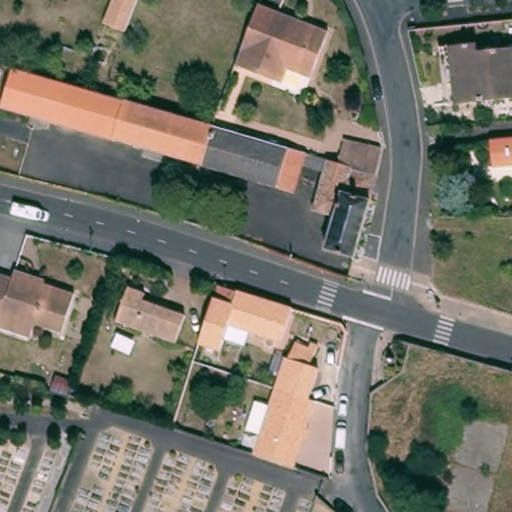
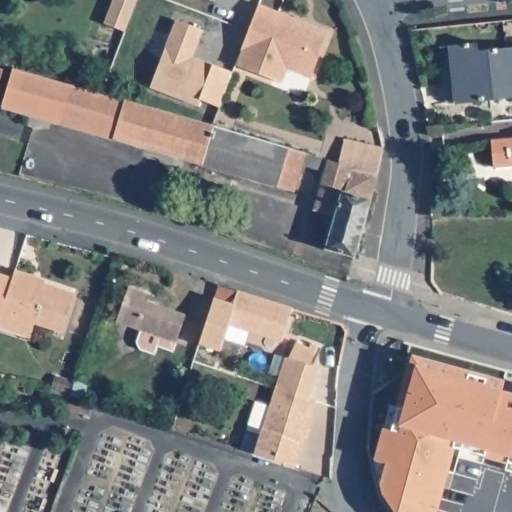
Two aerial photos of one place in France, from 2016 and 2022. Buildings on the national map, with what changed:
unchanged [(137,0),(126,30),(105,24),(113,0),(137,0)]
unchanged [(272,82),(234,67),(257,8),(326,36),(308,83),(285,72),(280,86),(272,82)]
new [(201,32),(191,58),(202,63),(231,74),(217,107),(198,101),(195,107),(148,88),(175,21),(201,32)]
unchanged [(483,43),(485,52),(512,50),(512,101),(460,105),(455,45),(483,43)]
unchanged [(7,109),(18,69),(76,86),(75,92),(65,125),(7,109)]
unchanged [(0,101),(0,70),(8,72),(0,101)]
unchanged [(280,189),(65,125),(75,92),(76,86),(104,94),(215,126),(292,148),(280,189)]
unchanged [(331,251),(340,218),(320,211),(330,172),(308,165),(300,194),(280,189),(292,148),(343,163),(350,139),(360,143),(387,151),(388,155),(385,178),(382,177),(361,260),(331,251)]
unchanged [(501,166),(500,140),(512,140),(512,165),(501,166)]
unchanged [(14,269),(75,289),(62,328),(35,319),(30,333),(0,323),(0,270),(12,274),(14,269)]
unchanged [(204,346),(211,322),(221,288),(295,310),(287,335),(277,332),(273,341),(234,329),(225,352),(204,346)]
unchanged [(148,294),(146,300),(190,315),(180,345),(120,326),(131,289),(148,294)]
unchanged [(318,350),(321,346),(325,347),(314,375),(294,366),(303,344),(318,350)]
new [(505,470),(507,461),(482,453),(480,463),(457,456),(451,471),(446,469),(433,512),(397,512),(379,475),(376,468),(375,460),(383,428),(390,406),(402,395),(411,358),(502,383),(500,390),(512,393),(512,472),(505,470)]
unchanged [(254,452),(276,386),(315,399),(297,463),(254,452)]

